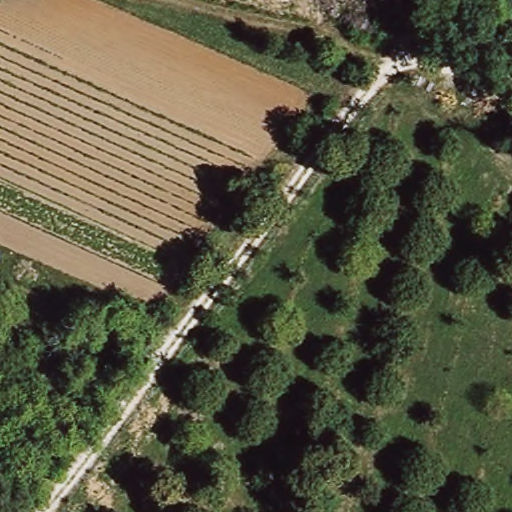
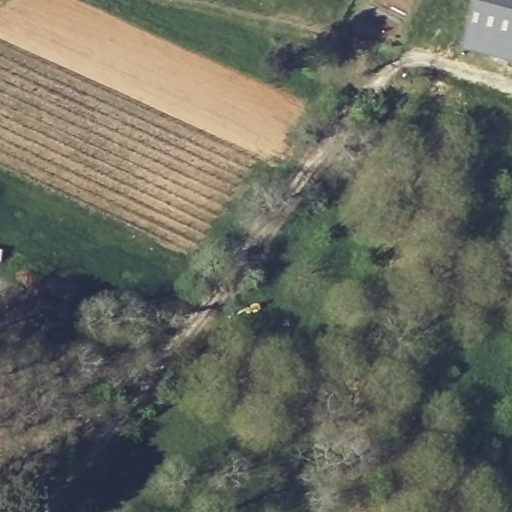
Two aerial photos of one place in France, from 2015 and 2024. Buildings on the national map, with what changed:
new [(512,57),(467,44),(478,0),(512,0),(512,57)]

